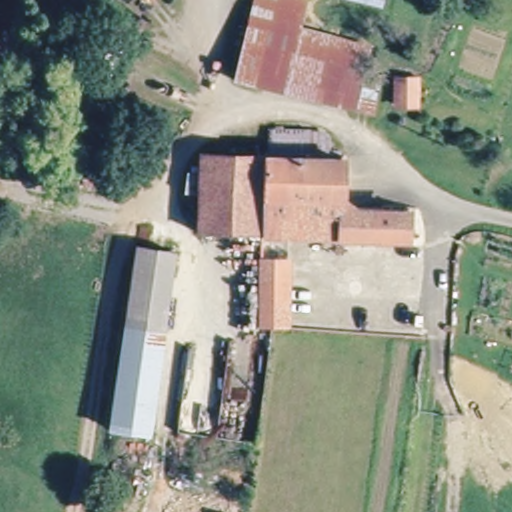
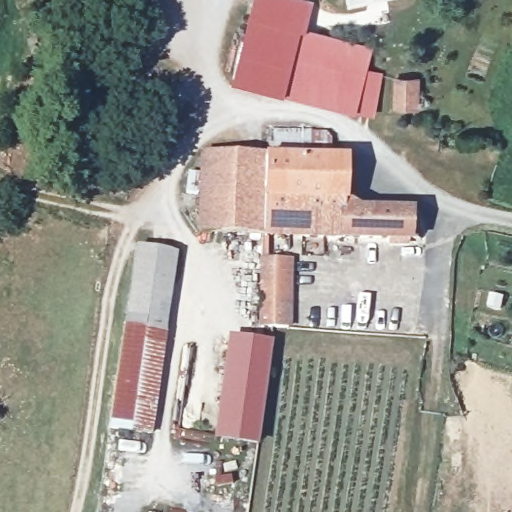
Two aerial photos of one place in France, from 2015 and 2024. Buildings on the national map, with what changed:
unchanged [(257,0),(308,0),(312,1),(304,25),(255,7),(257,0)]
unchanged [(283,91),(234,72),(255,7),(304,25),(297,46),(283,91)]
unchanged [(377,51),(369,72),(297,46),(304,25),(377,51)]
unchanged [(369,72),(384,77),(372,117),(283,91),(297,46),(369,72)]
unchanged [(397,70),(417,75),(417,113),(395,109),(397,70)]
unchanged [(323,170),(267,166),(268,139),(298,140),(325,142),(323,170)]
unchanged [(203,162),(237,165),(235,240),(197,239),(203,162)]
unchanged [(265,240),(235,240),(237,165),(267,166),(266,205),(265,240)]
unchanged [(323,170),(342,171),(341,210),(266,205),(267,166),(323,170)]
unchanged [(407,244),(402,244),(396,244),(385,244),(278,241),(265,240),(266,205),(341,210),(352,211),(352,216),(402,220),(408,220),(407,244)]
unchanged [(134,248),(174,252),(151,435),(114,431),(134,248)]
unchanged [(259,326),(260,260),(293,260),(291,327),(259,326)]
new [(227,335),(273,341),(260,446),(213,440),(227,335)]

